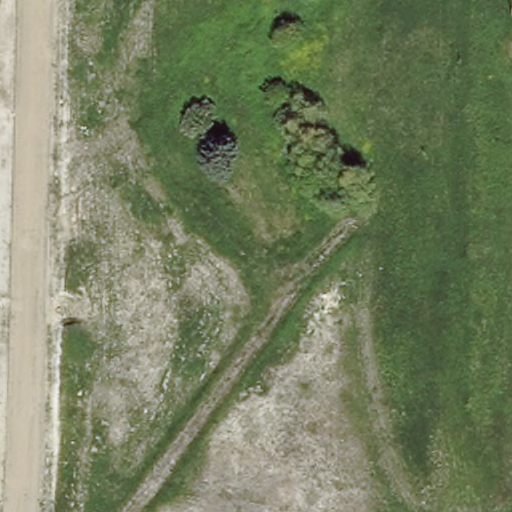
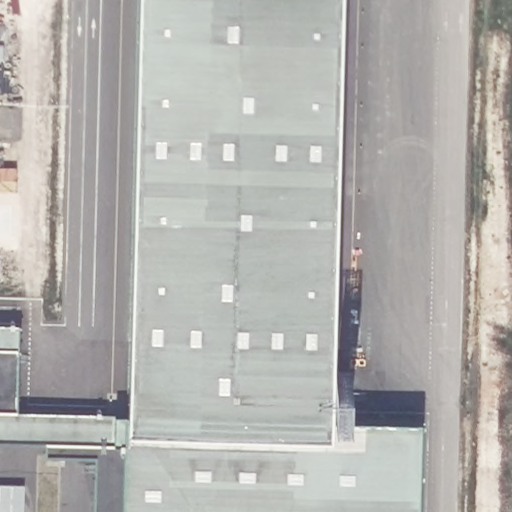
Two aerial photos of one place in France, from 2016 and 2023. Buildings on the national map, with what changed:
new [(99,454),(46,452),(46,443),(0,442),(0,321),(23,322),(18,410),(118,414),(130,410),(142,0),(343,0),(334,408),(425,421),(422,512),(96,512),(99,454)]

